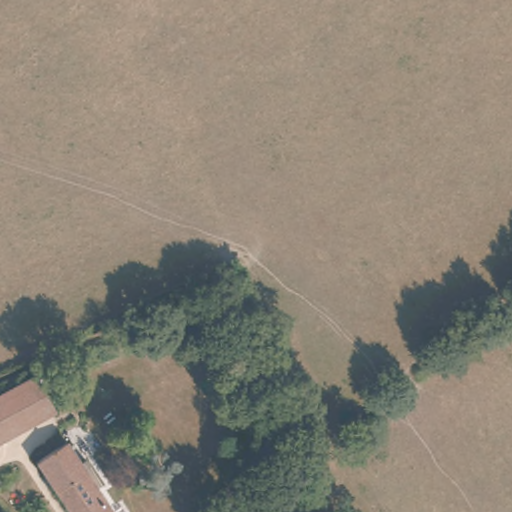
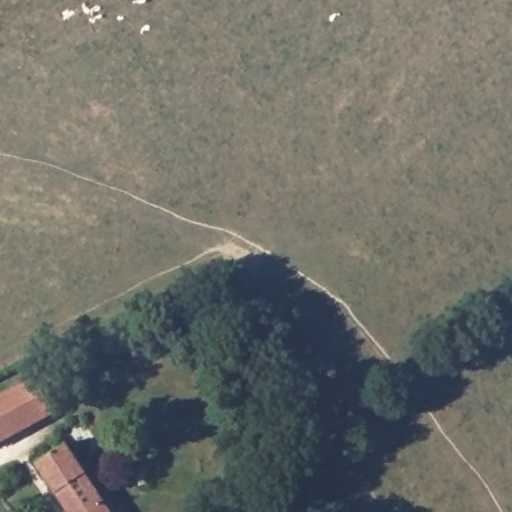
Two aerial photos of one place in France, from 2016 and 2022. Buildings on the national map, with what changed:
unchanged [(39,382),(54,411),(0,440),(0,400),(39,382)]
unchanged [(119,512),(69,512),(34,464),(67,440),(119,512)]

